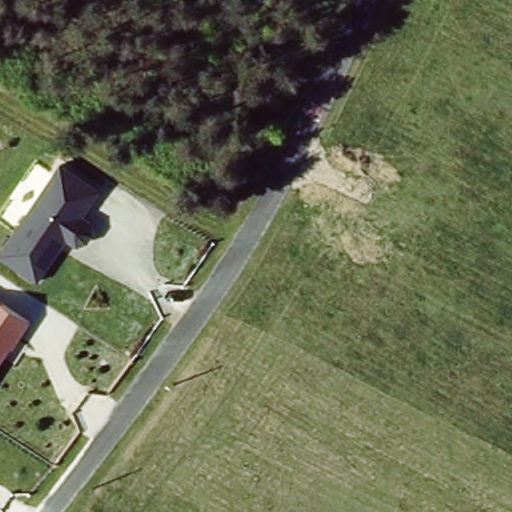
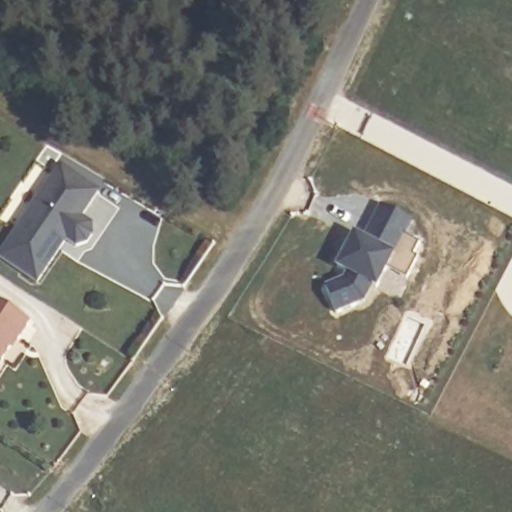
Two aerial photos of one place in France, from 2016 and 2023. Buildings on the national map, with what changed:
unchanged [(41,283),(0,257),(0,254),(58,164),(100,191),(83,217),(93,222),(93,234),(88,241),(78,245),(69,239),(63,248),(41,283)]
new [(410,280),(390,271),(380,290),(373,287),(365,303),(337,315),(326,287),(345,280),(348,275),(337,268),(345,252),(342,250),(351,234),(365,242),(383,207),(414,222),(407,237),(422,245),(410,280)]
unchanged [(27,321),(15,339),(12,337),(0,353),(0,302),(27,321)]

